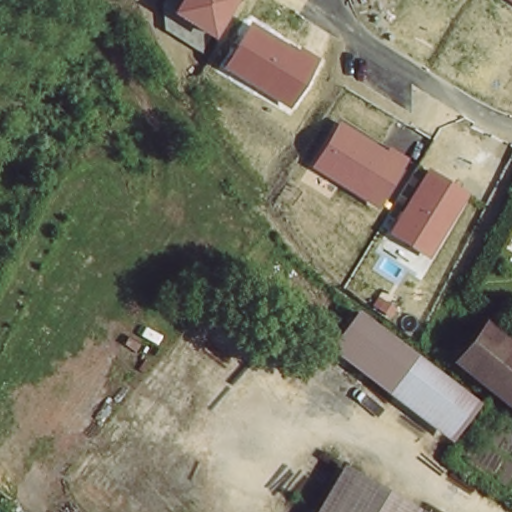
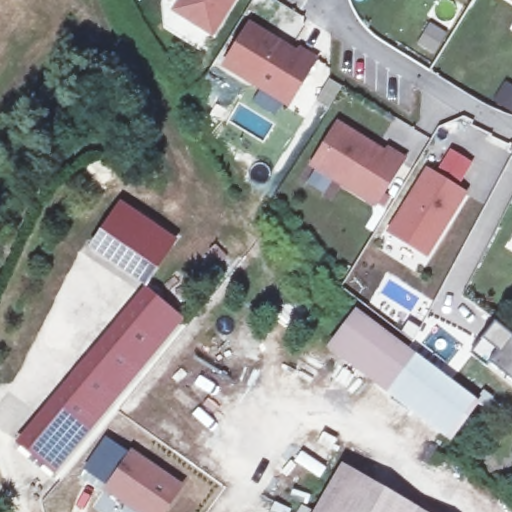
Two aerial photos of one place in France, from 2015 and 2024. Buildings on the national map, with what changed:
unchanged [(170,14),(179,0),(237,0),(212,40),(170,14)]
unchanged [(505,0),(512,0),(512,4),(505,0)]
unchanged [(317,59),(288,107),(221,68),(251,21),(317,59)]
unchanged [(339,119),(407,159),(376,208),(309,167),(339,119)]
unchanged [(386,233),(425,169),(468,194),(427,258),(386,233)]
new [(143,286),(87,249),(122,198),(182,236),(149,287),(186,319),(52,474),(14,442),(143,286)]
unchanged [(329,349),(347,320),(471,397),(453,426),(329,349)]
unchanged [(483,327),(512,347),(512,393),(461,361),(483,327)]
new [(132,448),(184,485),(164,512),(137,512),(103,489),(105,485),(82,470),(105,436),(129,453),(132,448)]
unchanged [(421,506),(418,512),(325,512),(353,465),(421,506)]
unchanged [(431,512),(418,512),(421,506),(431,512)]

